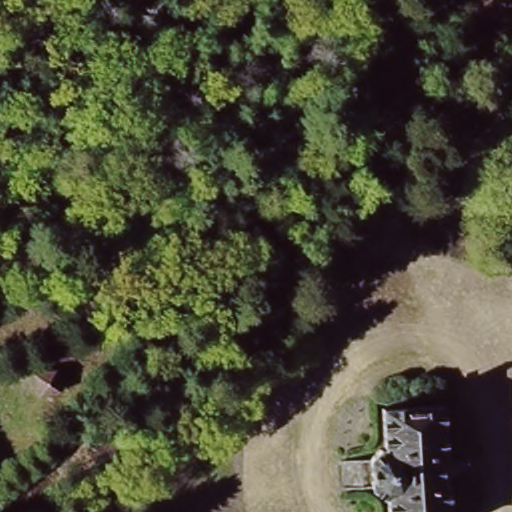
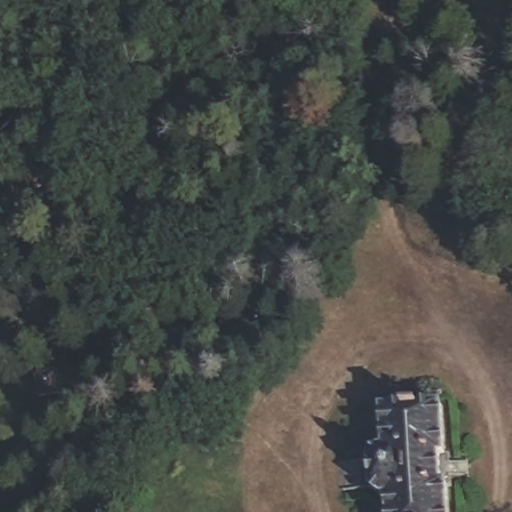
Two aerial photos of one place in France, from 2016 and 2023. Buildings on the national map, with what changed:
unchanged [(55,367),(66,388),(42,401),(31,378),(55,367)]
unchanged [(433,448),(443,446),(445,456),(451,455),(456,480),(451,481),(453,494),(444,497),(447,512),(385,512),(382,501),(365,505),(363,497),(336,503),(330,477),(358,471),(356,465),(373,461),(364,418),(424,406),(433,448)]

